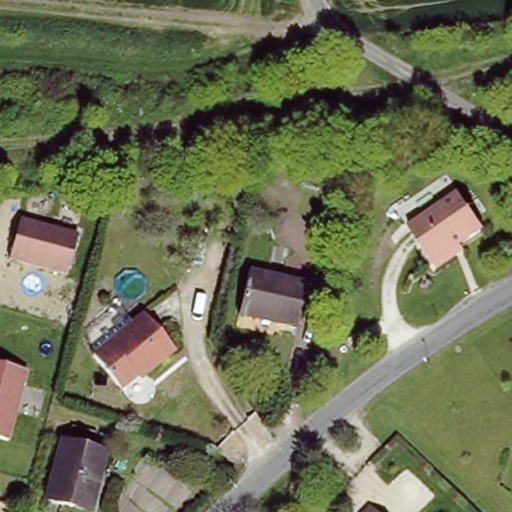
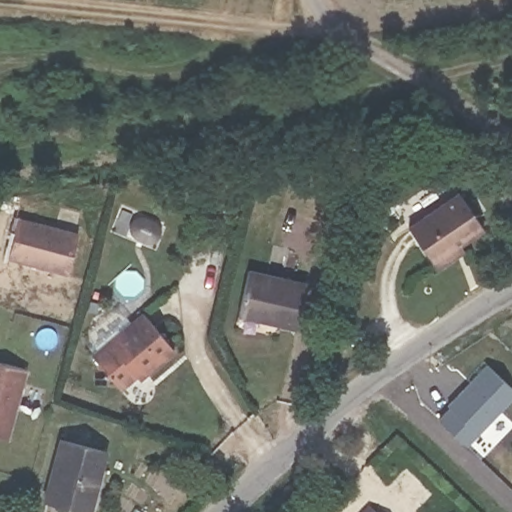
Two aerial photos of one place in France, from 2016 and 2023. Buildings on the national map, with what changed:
unchanged [(426,264),(424,259),(402,218),(455,187),(476,228),(453,242),(455,246),(426,264)]
unchanged [(64,269),(51,266),(5,256),(13,218),(61,228),(73,230),(64,269)]
unchanged [(249,277),(302,286),(295,327),(242,318),(249,277)]
unchanged [(143,319),(175,359),(147,381),(142,375),(120,393),(93,359),(143,319)]
new [(448,404),(463,388),(469,388),(472,383),(470,381),(486,362),(512,385),(512,394),(467,443),(440,418),(450,406),(448,404)]
unchanged [(25,370),(7,439),(0,438),(0,365),(25,370)]
unchanged [(73,507),(44,500),(55,454),(61,456),(66,437),(100,446),(95,464),(102,467),(95,498),(91,511),(73,507)]
unchanged [(363,509),(367,512),(360,512),(363,509)]

